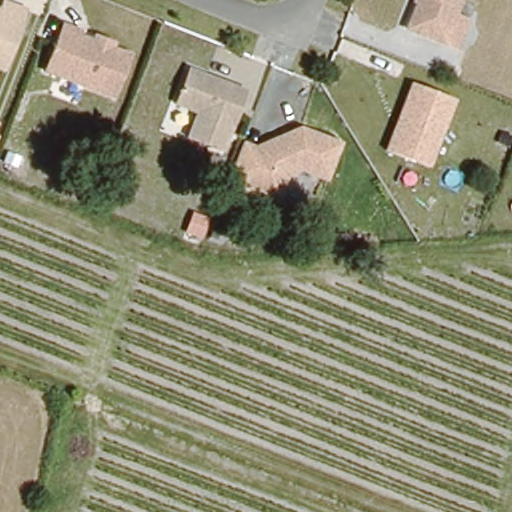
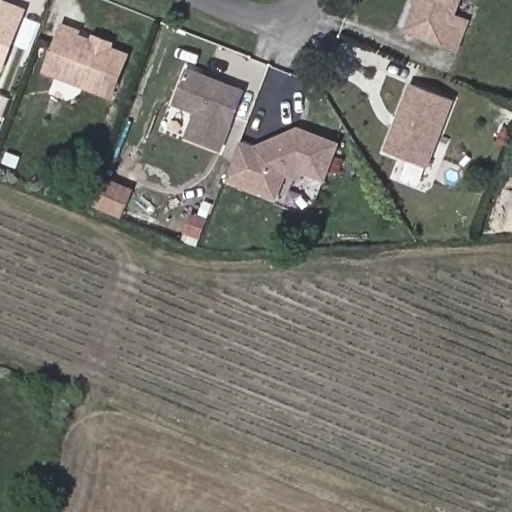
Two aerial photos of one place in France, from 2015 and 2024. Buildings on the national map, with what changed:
unchanged [(28,8),(5,67),(0,65),(0,8),(2,9),(6,0),(28,8)]
unchanged [(470,20),(457,51),(401,32),(413,0),(463,0),(457,15),(470,20)]
unchanged [(129,56),(114,94),(49,68),(65,28),(81,35),(80,37),(129,56)]
unchanged [(245,92),(222,152),(188,140),(198,113),(174,105),(187,70),(245,92)]
unchanged [(412,85),(454,101),(429,167),(385,150),(412,85)]
unchanged [(256,147),(298,126),(340,143),(325,181),(300,172),(290,177),(278,200),(227,181),(243,141),(256,147)]
unchanged [(1,135),(0,138),(0,135),(1,135)]

